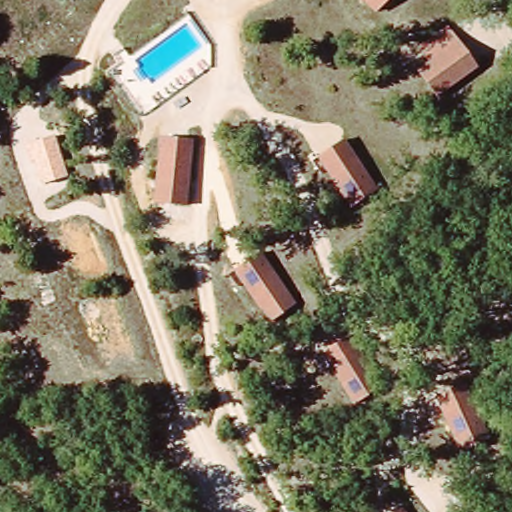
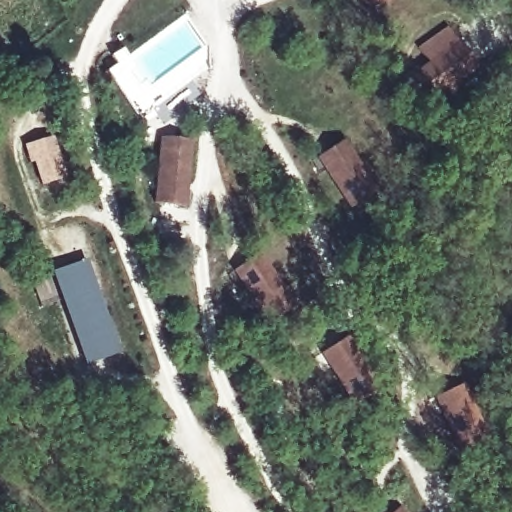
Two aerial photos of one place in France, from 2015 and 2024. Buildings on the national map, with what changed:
unchanged [(372,11),(361,0),(384,0),(372,11)]
unchanged [(456,40),(475,67),(432,98),(414,70),(456,40)]
new [(24,144),(54,135),(67,176),(40,185),(24,144)]
unchanged [(159,136),(193,140),(185,207),(150,202),(159,136)]
unchanged [(343,139),(373,188),(346,206),(318,160),(343,139)]
unchanged [(229,271),(257,251),(294,302),(267,321),(229,271)]
new [(40,306),(35,291),(55,284),(50,272),(88,259),(121,352),(83,365),(60,299),(40,306)]
unchanged [(359,337),(385,388),(352,407),(324,356),(359,337)]
unchanged [(467,383),(488,436),(455,450),(432,396),(467,383)]
unchanged [(404,512),(393,512),(400,507),(404,512)]

